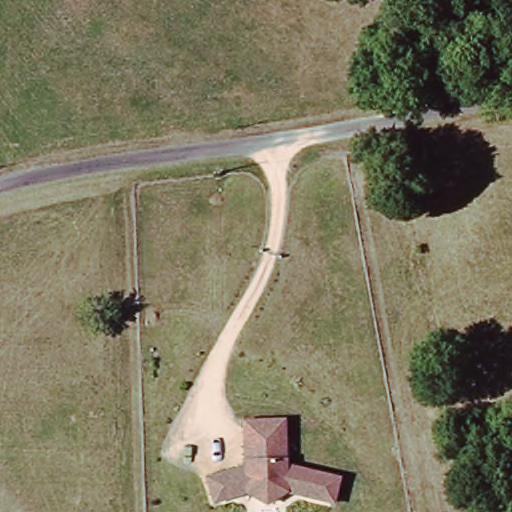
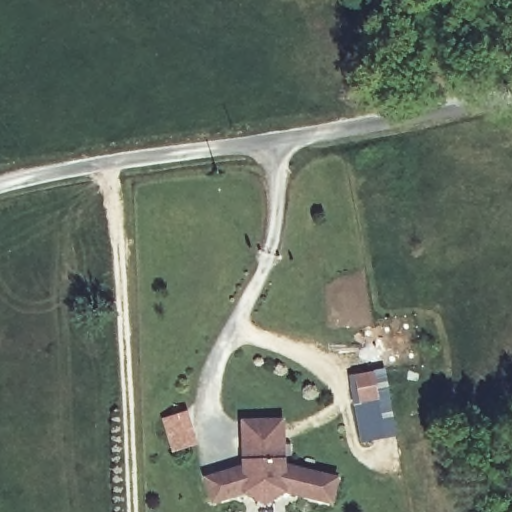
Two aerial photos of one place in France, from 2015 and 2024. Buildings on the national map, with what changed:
new [(385,368),(398,435),(359,443),(352,387),(350,387),(349,375),(385,368)]
unchanged [(343,455),(342,480),(292,478),(275,490),(250,487),(221,502),(210,480),(250,461),(243,435),(239,416),(278,408),(283,429),(287,452),(343,455)]

